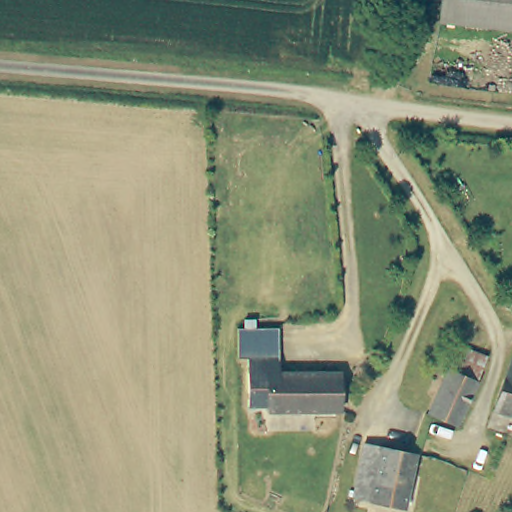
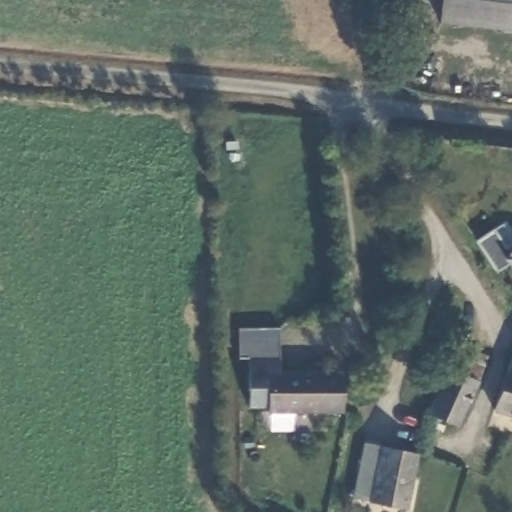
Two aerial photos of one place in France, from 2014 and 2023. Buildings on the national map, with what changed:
unchanged [(441,0),(512,0),(512,30),(439,21),(441,0)]
new [(497,272),(477,240),(504,222),(512,236),(512,269),(507,264),(497,272)]
unchanged [(252,357),(252,358),(242,357),(242,327),(284,328),(283,358),(252,357)]
unchanged [(487,359),(457,427),(427,412),(457,346),(487,359)]
unchanged [(344,413),(270,411),(270,406),(251,406),(252,372),(252,358),(252,357),(283,358),(283,373),(345,374),(344,413)]
unchanged [(496,410),(512,372),(512,416),(497,410),(496,410)]
unchanged [(362,497),(373,453),(375,443),(392,446),(427,454),(415,509),(362,497)]

